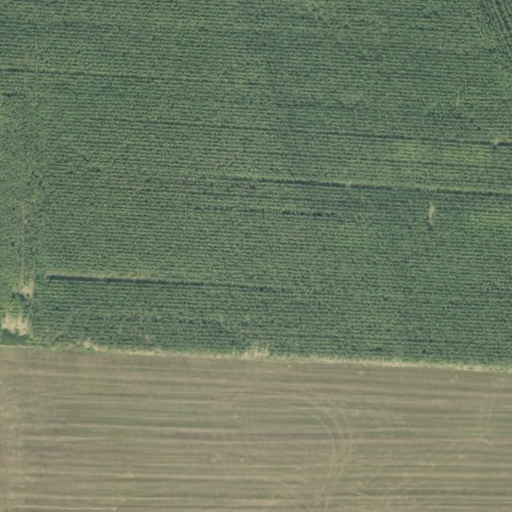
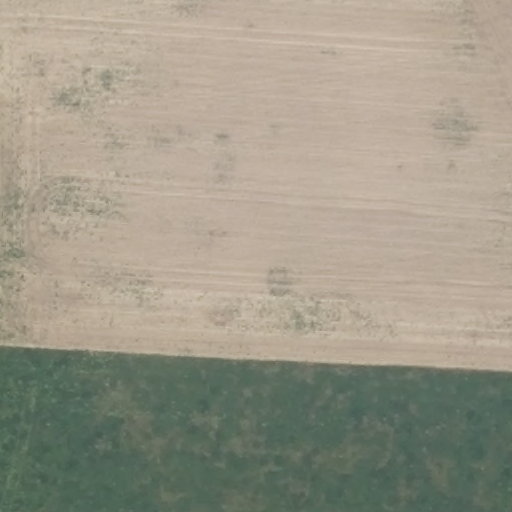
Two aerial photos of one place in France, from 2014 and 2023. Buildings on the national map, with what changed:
[]

